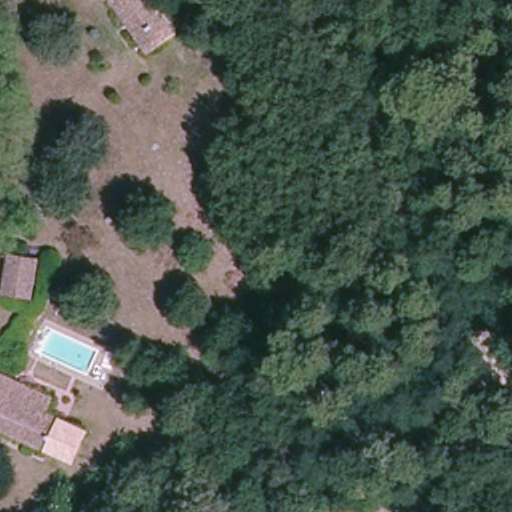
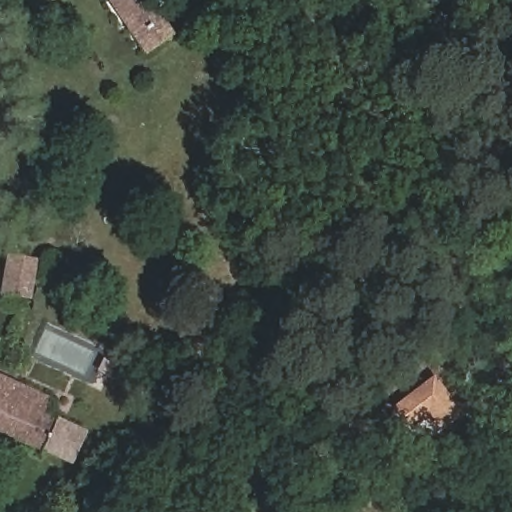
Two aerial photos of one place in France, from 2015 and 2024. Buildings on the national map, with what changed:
unchanged [(137,0),(148,0),(171,28),(144,50),(118,16),(137,0)]
unchanged [(1,296),(2,284),(5,258),(30,258),(28,286),(26,298),(1,296)]
unchanged [(50,433),(65,442),(54,460),(0,429),(0,374),(62,407),(50,433)]
new [(429,416),(411,429),(393,407),(434,375),(465,413),(441,432),(429,416)]

